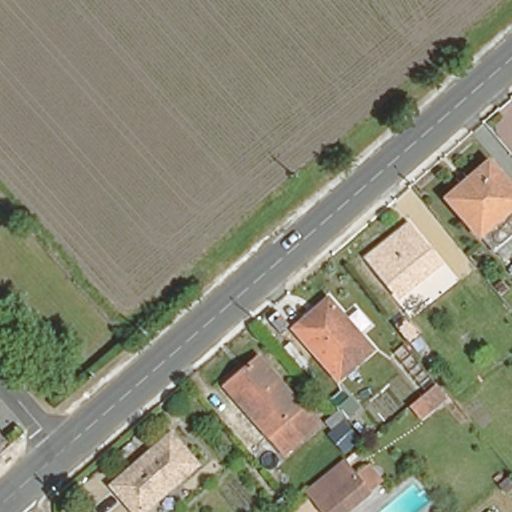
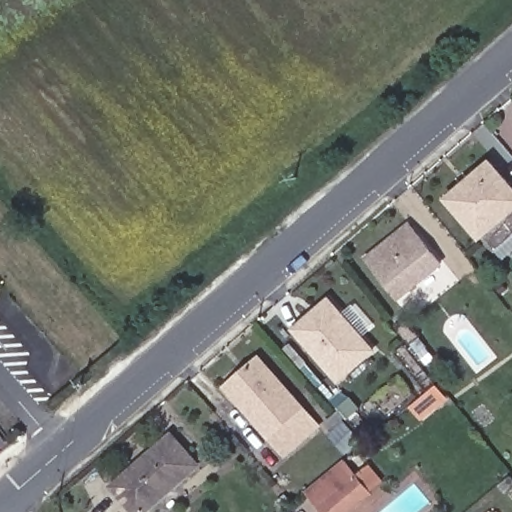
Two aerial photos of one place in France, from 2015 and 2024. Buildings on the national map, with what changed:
unchanged [(482,234),(479,236),(448,198),(490,163),(512,190),(512,229),(492,247),(482,234)]
unchanged [(399,295),(369,257),(408,225),(438,264),(399,295)]
unchanged [(339,378),(297,329),(331,300),(371,350),(339,378)]
unchanged [(281,458),(223,390),(255,362),(313,430),(281,458)]
unchanged [(421,424),(405,405),(435,382),(450,399),(421,424)]
unchanged [(366,433),(340,401),(353,391),(371,412),(384,400),(393,410),(366,433)]
unchanged [(143,512),(137,512),(112,483),(171,433),(198,465),(143,512)]
unchanged [(350,512),(324,512),(309,494),(343,466),(369,497),(350,512)]
unchanged [(512,486),(505,491),(499,484),(509,475),(512,479),(512,486)]

